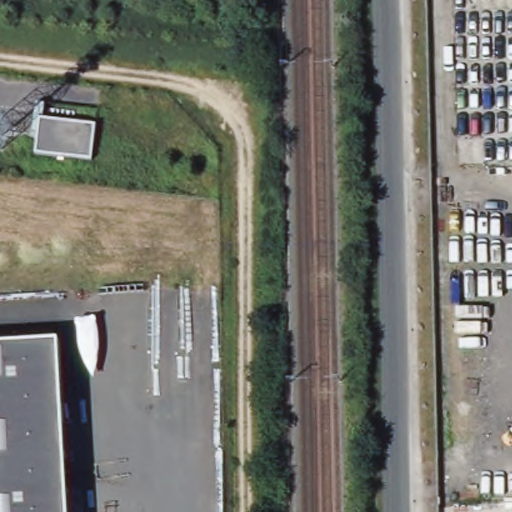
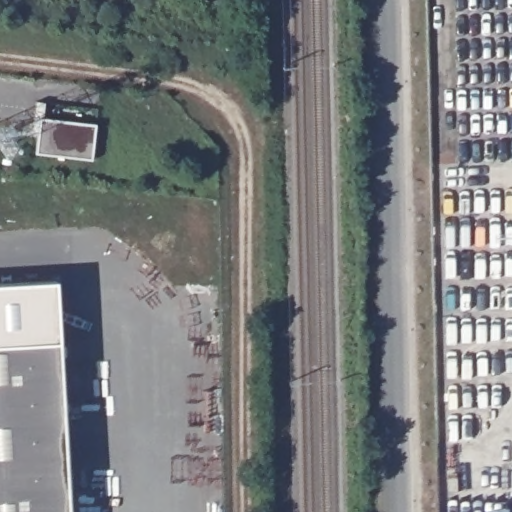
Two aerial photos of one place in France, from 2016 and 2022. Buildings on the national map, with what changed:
unchanged [(31,154),(33,117),(94,122),(91,159),(31,154)]
new [(0,342),(0,285),(56,281),(57,339),(0,342)]
unchanged [(67,512),(0,512),(0,342),(57,339),(67,512)]

